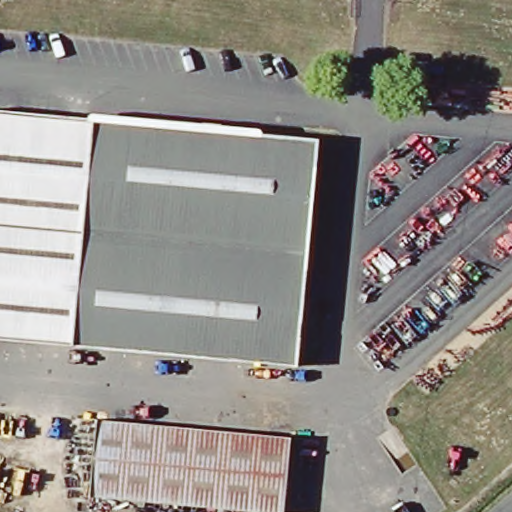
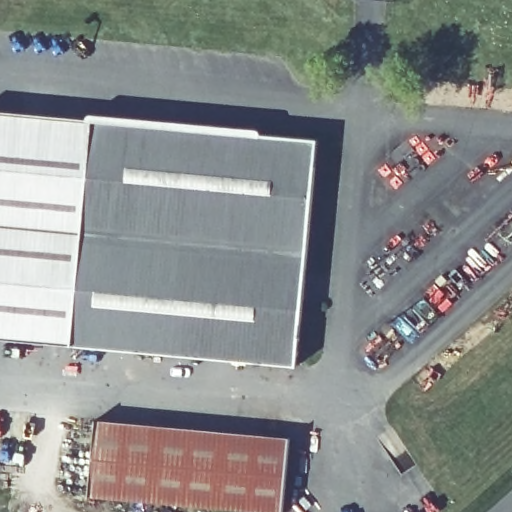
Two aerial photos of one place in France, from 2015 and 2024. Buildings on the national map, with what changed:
unchanged [(326,144),(302,368),(0,336),(0,108),(326,144)]
unchanged [(106,417),(296,438),(287,510),(97,489),(106,417)]

